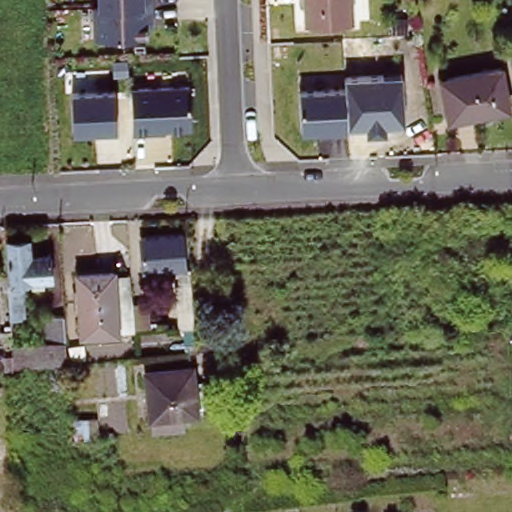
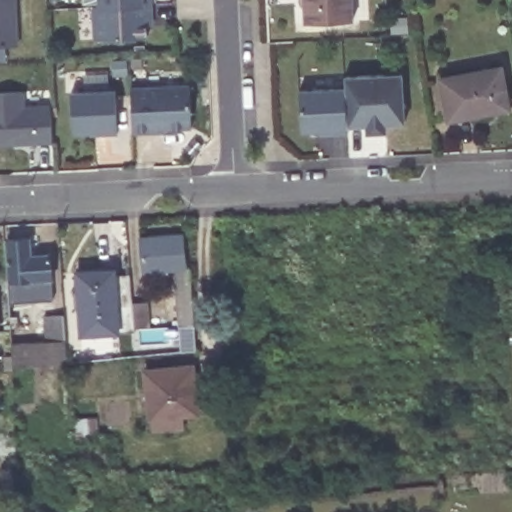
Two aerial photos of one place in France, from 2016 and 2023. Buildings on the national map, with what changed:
unchanged [(148,25),(148,37),(92,40),(92,6),(99,5),(99,0),(152,0),(153,25),(148,25)]
unchanged [(302,22),(302,0),(351,0),(352,20),(302,22)]
unchanged [(438,76),(446,75),(496,66),(502,107),(453,115),(445,116),(438,76)]
unchanged [(406,124),(387,125),(386,132),(367,134),(367,126),(351,126),(347,90),(346,76),(403,72),(406,124)]
unchanged [(190,82),(192,126),(165,127),(165,131),(132,132),(130,85),(190,82)]
unchanged [(116,89),(118,130),(71,132),(70,90),(116,89)]
unchanged [(351,126),(352,137),(319,140),(317,131),(302,131),(298,93),(347,90),(351,126)]
new [(0,145),(0,93),(25,92),(25,105),(50,104),(52,143),(0,145)]
unchanged [(179,325),(175,275),(181,275),(181,269),(143,271),(141,236),(182,233),(185,266),(190,266),(195,325),(179,325)]
unchanged [(7,280),(10,280),(7,239),(30,238),(32,255),(50,254),(52,278),(45,279),(45,285),(32,286),(32,280),(19,280),(20,286),(22,286),(24,315),(10,316),(7,280)]
unchanged [(140,335),(125,335),(72,340),(66,278),(106,275),(106,281),(120,280),(122,310),(137,310),(140,335)]
unchanged [(42,341),(41,315),(60,313),(65,361),(8,365),(7,342),(42,341)]
unchanged [(146,411),(142,370),(190,366),(193,408),(177,410),(178,425),(147,428),(146,411)]

